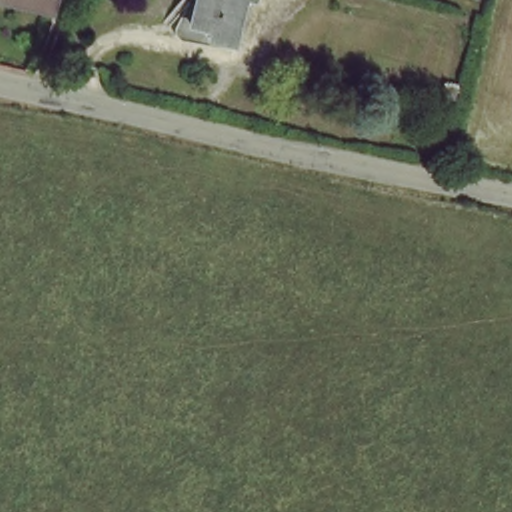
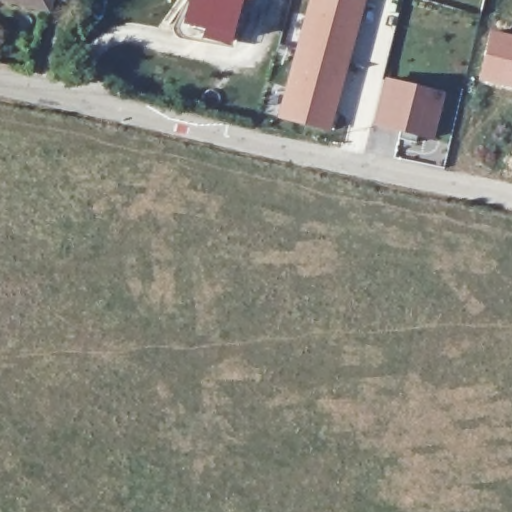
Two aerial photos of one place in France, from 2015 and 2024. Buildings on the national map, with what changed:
unchanged [(55,14),(0,1),(0,0),(58,0),(57,6),(55,14)]
unchanged [(240,1),(229,47),(204,41),(206,33),(187,27),(193,0),(250,0),(249,4),(240,1)]
new [(310,0),(365,0),(330,132),(278,117),(310,0)]
new [(512,35),(512,89),(478,80),(490,30),(512,35)]
new [(385,79),(445,94),(433,141),(373,126),(385,79)]

